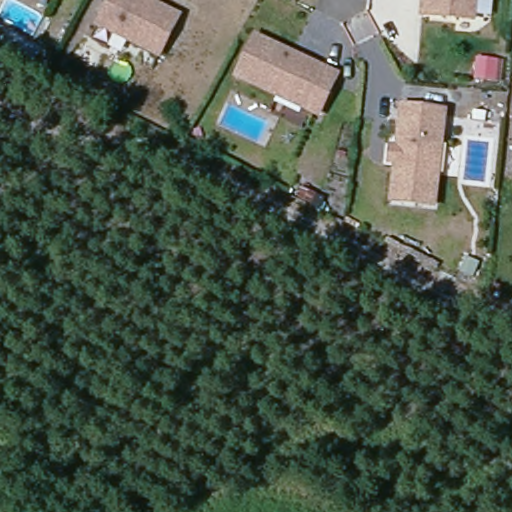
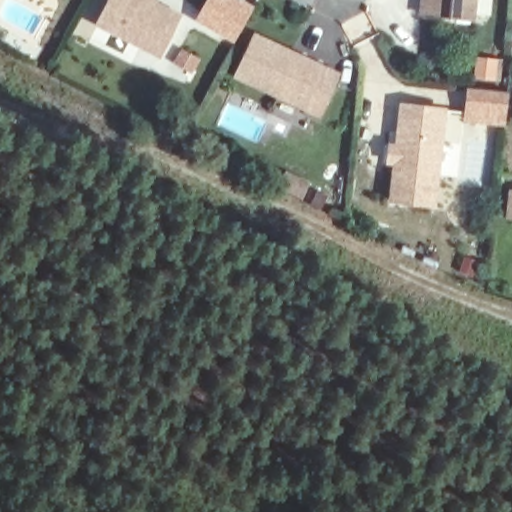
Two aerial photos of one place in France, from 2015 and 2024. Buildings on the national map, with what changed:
unchanged [(100,25),(112,0),(157,0),(156,4),(181,19),(160,57),(100,25)]
new [(245,0),(254,5),(233,44),(194,20),(205,0),(245,0)]
unchanged [(419,13),(420,0),(473,0),(472,17),(419,13)]
unchanged [(340,75),(320,116),(239,76),(258,38),(340,75)]
new [(474,55),(500,59),(498,83),(472,79),(474,55)]
new [(466,86),(509,91),(504,127),(461,122),(466,86)]
unchanged [(446,112),(437,209),(394,203),(399,165),(392,164),(393,149),(401,150),(406,108),(446,112)]
new [(508,188),(512,189),(512,220),(503,219),(508,188)]

